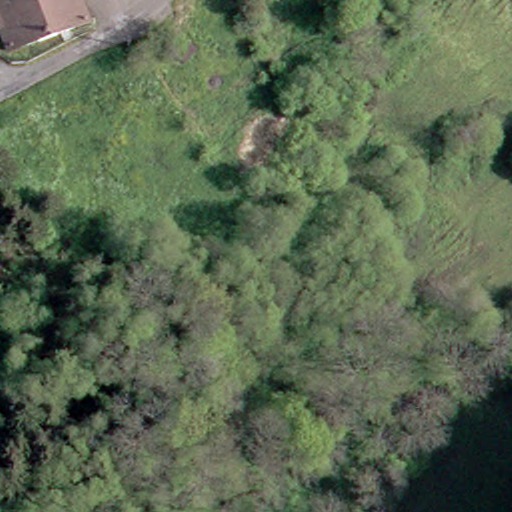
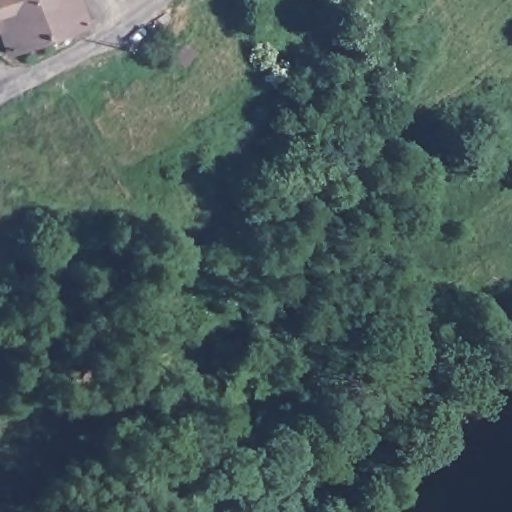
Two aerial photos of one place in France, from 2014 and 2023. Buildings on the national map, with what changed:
unchanged [(4,54),(0,45),(0,0),(79,0),(87,23),(4,54)]

